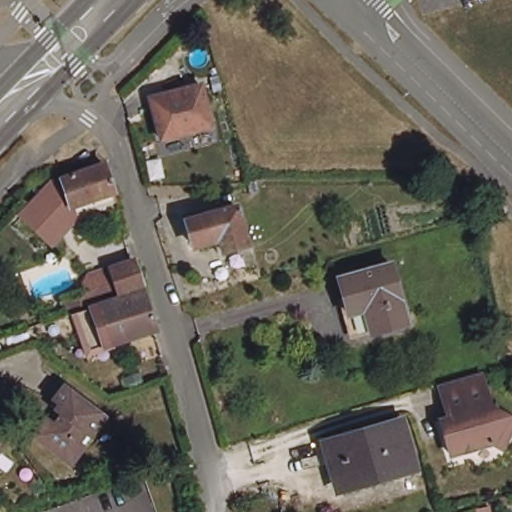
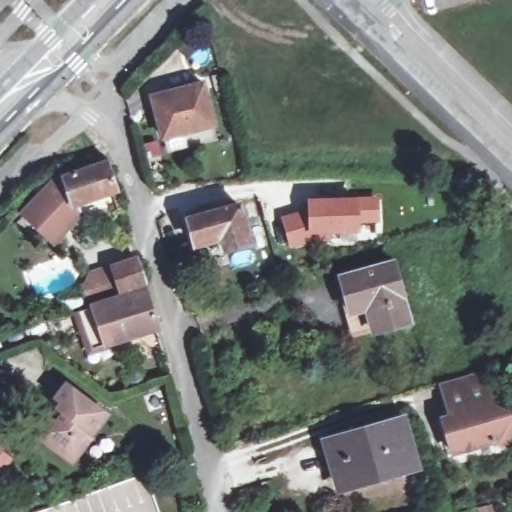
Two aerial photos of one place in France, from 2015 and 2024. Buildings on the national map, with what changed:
unchanged [(183,91),(182,86),(200,81),(211,122),(161,136),(153,101),(183,91)]
unchanged [(62,178),(108,163),(117,193),(78,205),(72,207),(62,178)]
unchanged [(51,181),(62,178),(72,207),(78,205),(80,221),(55,248),(21,214),(51,181)]
new [(357,223),(356,233),(330,233),(330,242),(290,247),(281,219),(309,210),(309,199),(355,198),(379,198),(378,221),(357,223)]
unchanged [(193,252),(186,228),(236,214),(247,252),(223,259),(220,245),(193,252)]
unchanged [(97,287),(115,281),(111,267),(136,259),(145,285),(120,294),(101,300),(97,287)]
unchanged [(351,307),(343,279),(395,264),(412,324),(376,333),(360,338),(351,307)]
unchanged [(78,314),(143,293),(147,292),(160,330),(154,332),(91,351),(78,314)]
unchanged [(484,374),(493,407),(512,418),(512,436),(505,449),(495,444),(453,455),(445,420),(453,418),(444,385),(484,374)]
unchanged [(91,447),(85,444),(76,456),(42,429),(55,411),(60,415),(66,409),(61,405),(55,401),(60,395),(70,381),(110,411),(98,426),(103,431),(91,447)]
unchanged [(342,490),(328,443),(405,421),(420,469),(342,490)]
unchanged [(0,450),(0,446),(1,448),(0,450)]
unchanged [(478,509),(490,507),(492,512),(479,512),(478,509)]

